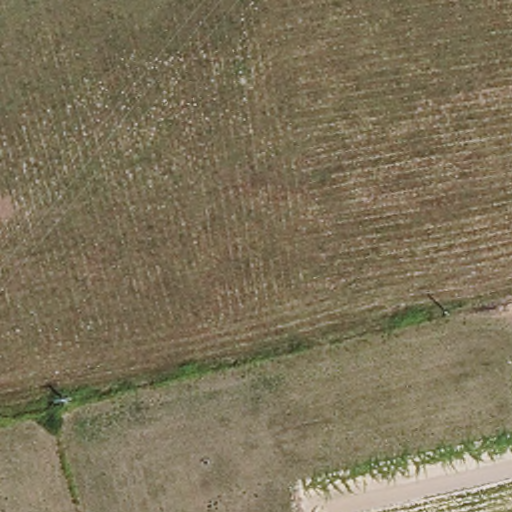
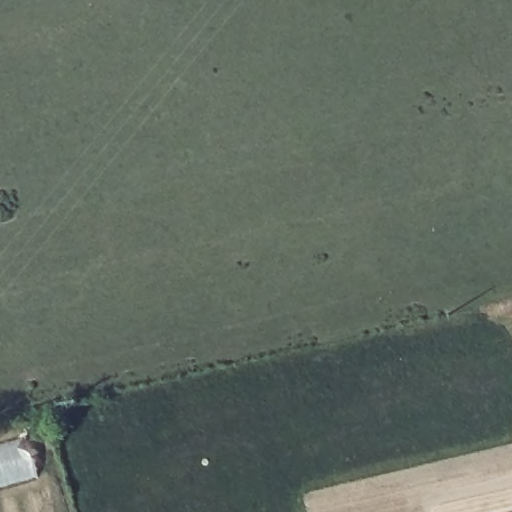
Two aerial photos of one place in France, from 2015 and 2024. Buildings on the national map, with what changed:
new [(19,445),(27,443),(37,477),(0,487),(0,444),(17,440),(19,445)]

